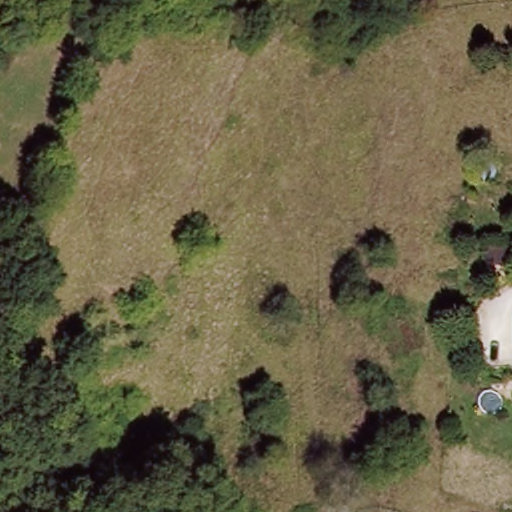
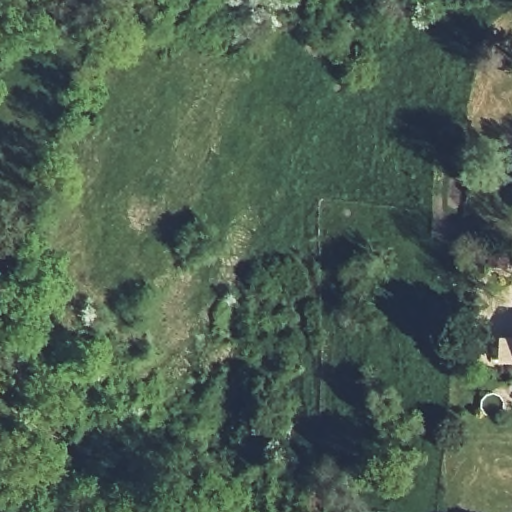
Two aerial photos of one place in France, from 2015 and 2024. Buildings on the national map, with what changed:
unchanged [(125,501),(139,510),(138,512),(118,512),(125,501)]

